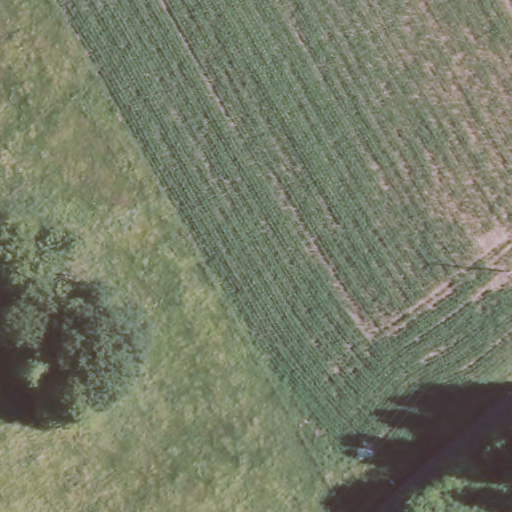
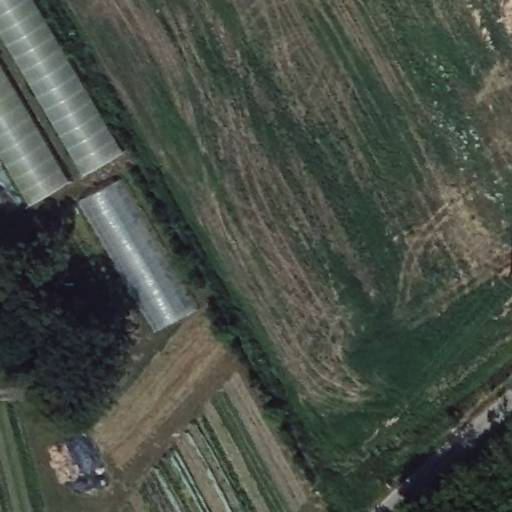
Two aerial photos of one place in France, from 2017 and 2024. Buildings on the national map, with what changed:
new [(124,152),(84,174),(0,27),(0,0),(36,0),(124,152)]
new [(0,57),(71,179),(31,202),(0,149),(0,57)]
new [(83,199),(121,177),(198,306),(158,330),(83,199)]

